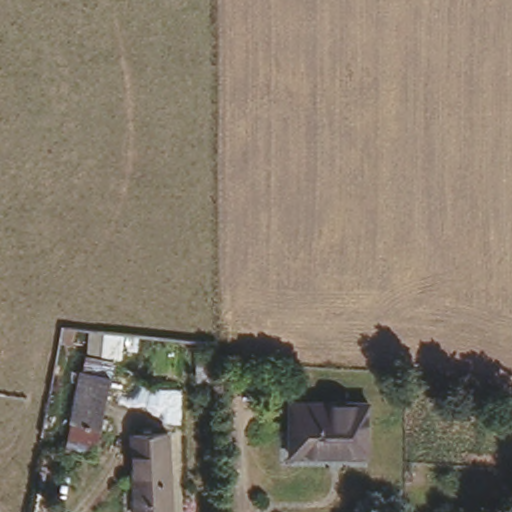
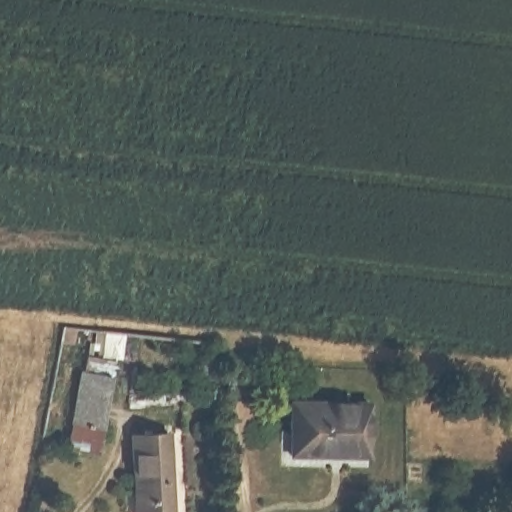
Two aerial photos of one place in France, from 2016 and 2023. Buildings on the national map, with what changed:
unchanged [(68,439),(83,363),(113,368),(99,444),(68,439)]
unchanged [(355,398),(354,450),(288,445),(287,394),(355,398)]
unchanged [(166,430),(171,509),(134,512),(129,431),(166,430)]

